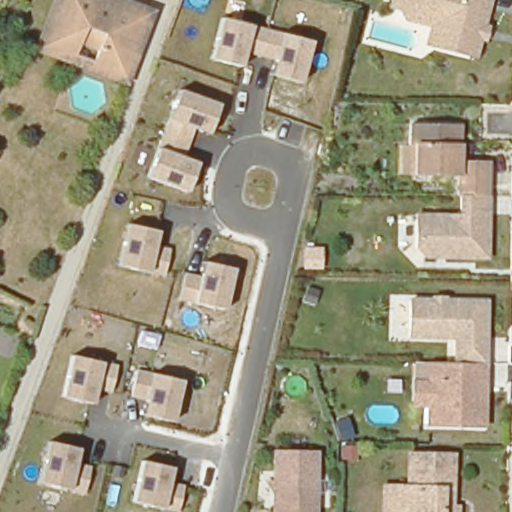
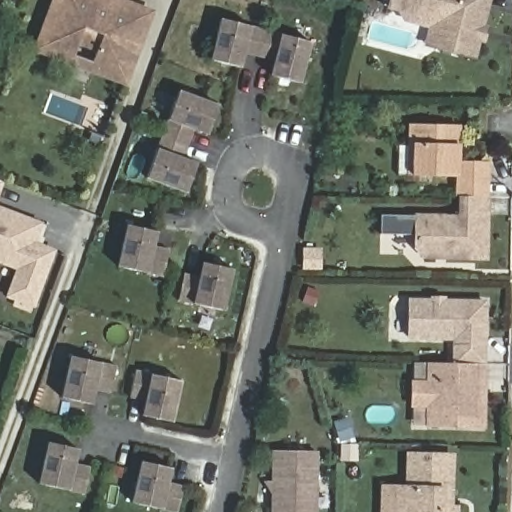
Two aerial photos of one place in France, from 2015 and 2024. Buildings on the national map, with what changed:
unchanged [(116,0),(151,13),(125,84),(36,50),(55,0),(116,0)]
unchanged [(432,29),(406,21),(400,9),(391,6),(393,0),(486,0),(484,8),(487,9),(483,25),(479,39),(478,43),(473,58),(435,47),(428,45),(432,31),(432,29)]
unchanged [(246,54),(242,68),(211,59),(221,18),(252,26),(283,34),(313,43),(303,83),(271,75),(275,60),(246,54)]
unchanged [(182,158),(199,164),(189,193),(147,179),(178,90),(220,104),(210,135),(194,129),(182,158)]
unchanged [(489,165),(488,195),(461,194),(458,194),(458,174),(414,174),(409,174),(410,144),(410,124),(427,124),(427,126),(443,126),(443,124),(460,124),(460,159),(469,160),(489,160),(489,165)]
new [(0,183),(4,184),(0,195),(0,183)]
unchanged [(488,195),(487,257),(425,255),(416,245),(417,214),(461,214),(461,194),(488,195)]
new [(40,244),(58,250),(37,308),(6,297),(16,270),(0,264),(0,207),(47,225),(40,244)]
unchanged [(171,249),(164,276),(149,274),(117,267),(126,225),(160,232),(156,248),(171,249)]
unchanged [(204,263),(236,269),(227,309),(196,304),(179,299),(186,274),(199,279),(204,263)]
unchanged [(455,338),(409,337),(410,300),(486,302),(485,364),(455,363),(455,338)]
unchanged [(119,367),(112,394),(98,393),(94,404),(63,398),(72,356),(104,363),(119,367)]
unchanged [(455,363),(485,364),(483,427),(428,425),(429,403),(414,403),(414,383),(429,384),(430,363),(440,363),(455,363)]
unchanged [(184,380),(176,422),(143,414),(146,403),(129,398),(135,371),(152,374),(184,380)]
unchanged [(93,466),(86,493),(71,491),(39,483),(49,443),(81,449),(78,466),(93,466)]
unchanged [(274,451),(317,452),(315,512),(273,512),(274,451)]
unchanged [(413,493),(414,459),(458,461),(457,494),(446,494),(446,512),(390,512),(390,493),(403,493),(413,493)]
new [(143,462),(172,468),(169,483),(185,487),(179,512),(174,512),(134,504),(143,462)]

